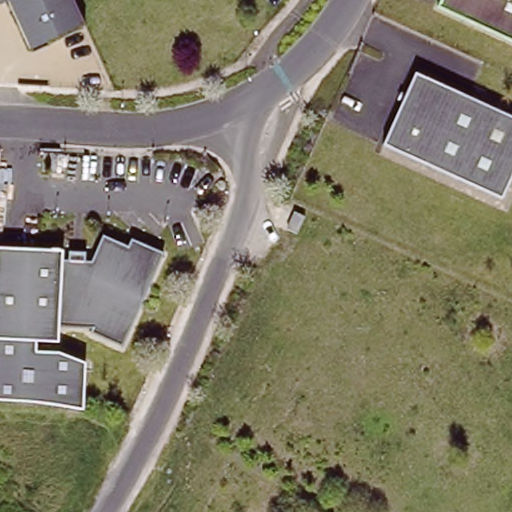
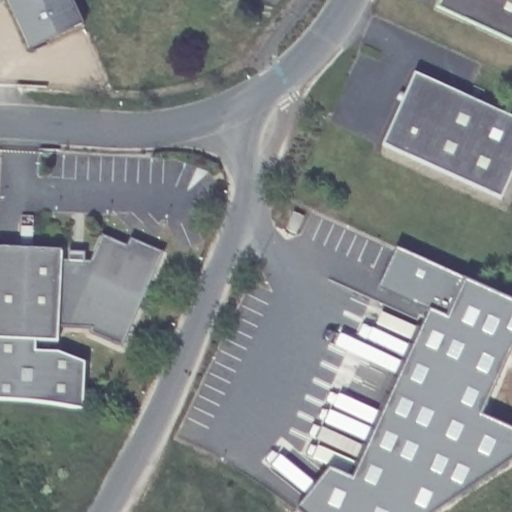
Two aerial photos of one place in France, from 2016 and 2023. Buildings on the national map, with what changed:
unchanged [(28,49),(6,2),(0,5),(0,0),(73,0),(83,22),(28,49)]
unchanged [(432,6),(435,0),(512,0),(512,43),(432,6)]
unchanged [(504,198),(384,144),(416,72),(512,114),(512,179),(504,198)]
unchanged [(306,216),(298,232),(289,228),(294,211),(306,216)]
unchanged [(58,259),(64,259),(65,249),(80,250),(81,260),(88,261),(99,234),(124,245),(128,237),(148,245),(161,250),(158,258),(121,344),(88,332),(89,327),(55,325),(55,341),(35,340),(0,339),(0,247),(58,249),(58,259)]
new [(482,415),(512,428),(512,460),(437,512),(301,512),(296,508),(329,468),(353,478),(428,310),(378,286),(396,247),(462,277),(512,300),(512,348),(482,415)]
unchanged [(34,351),(56,352),(84,362),(83,407),(25,400),(0,399),(0,339),(35,340),(34,351)]

